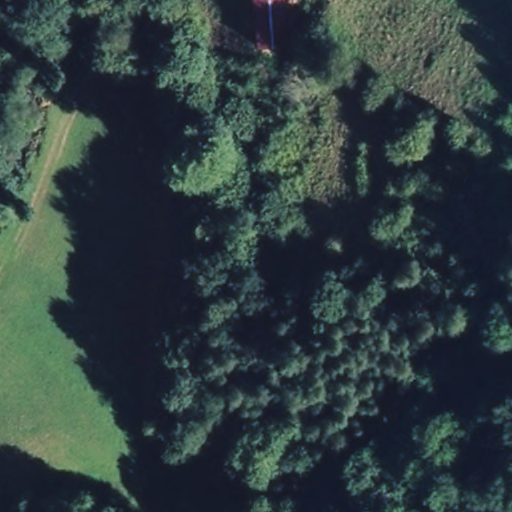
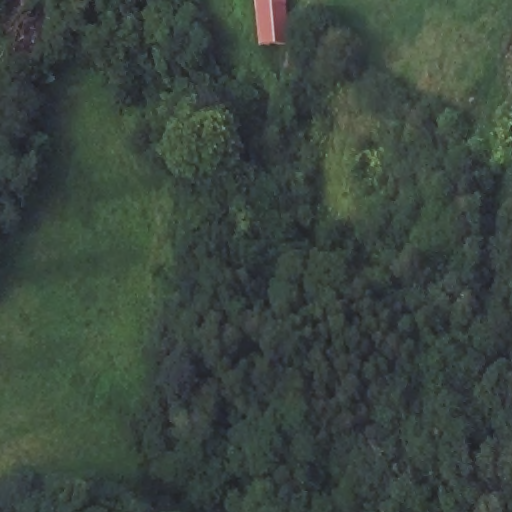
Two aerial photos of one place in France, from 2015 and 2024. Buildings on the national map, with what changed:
unchanged [(285,0),(292,46),(265,50),(256,0),(285,0)]

